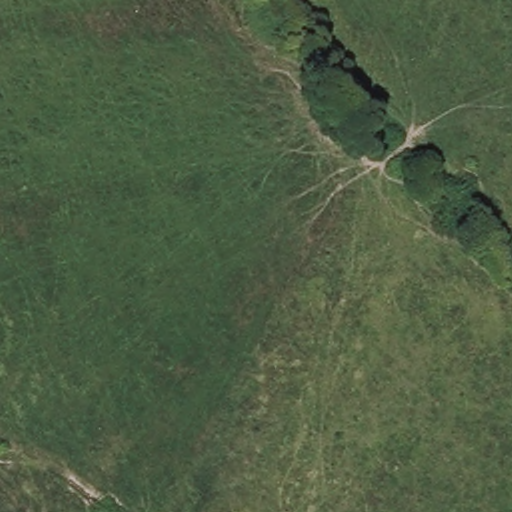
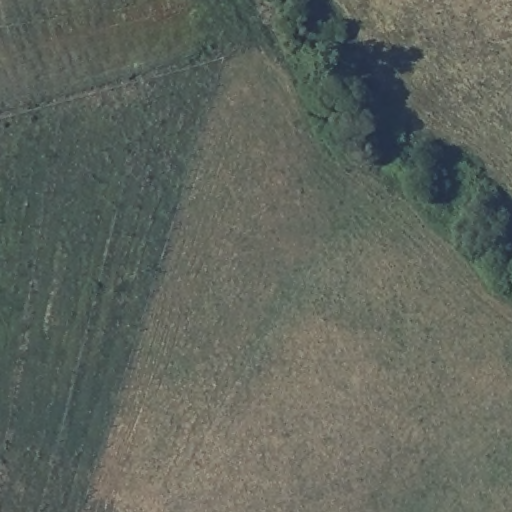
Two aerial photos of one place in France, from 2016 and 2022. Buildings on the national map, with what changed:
[]

